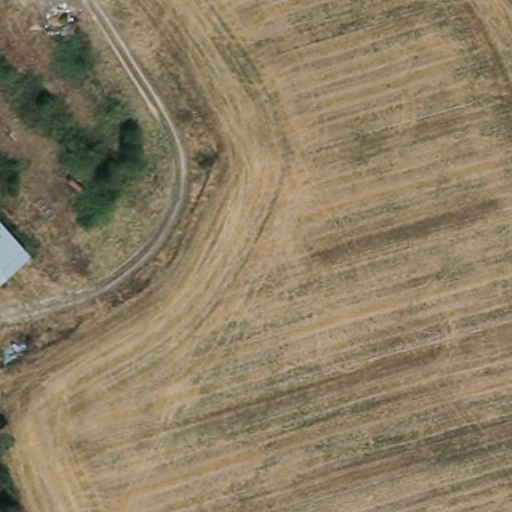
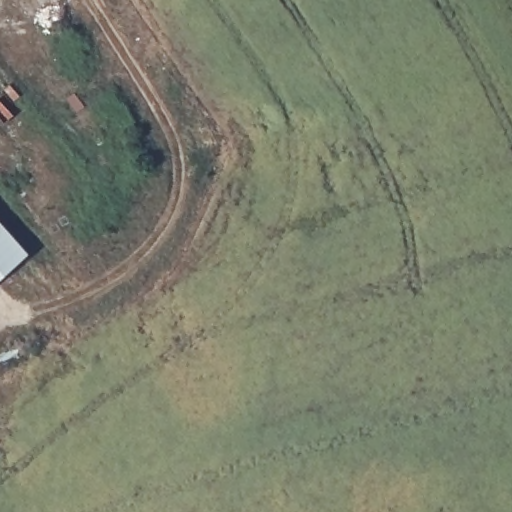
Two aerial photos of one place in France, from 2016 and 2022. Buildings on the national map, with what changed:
unchanged [(26,254),(0,278),(0,222),(26,254)]

